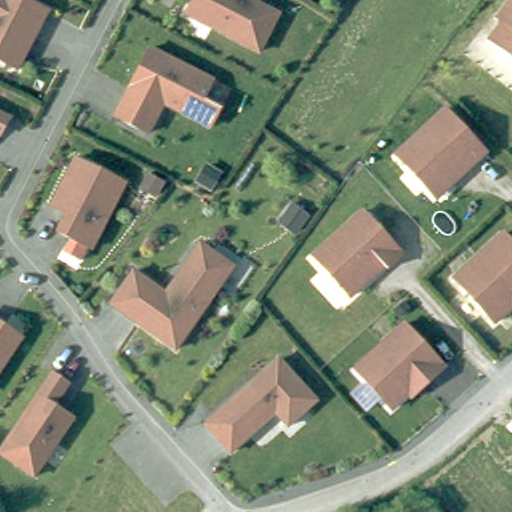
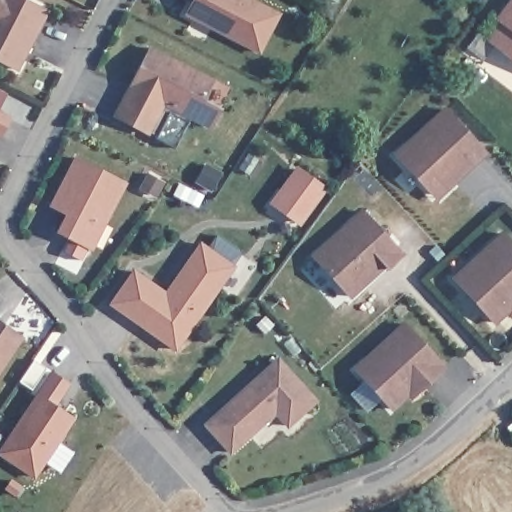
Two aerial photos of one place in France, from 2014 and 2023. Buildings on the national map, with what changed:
unchanged [(16,69),(0,60),(0,0),(29,0),(50,11),(16,69)]
unchanged [(278,11),(259,50),(185,15),(190,0),(256,0),(278,11)]
unchanged [(485,40),(503,17),(499,14),(510,0),(512,0),(512,61),(485,40)]
unchanged [(150,44),(216,79),(205,97),(219,105),(210,125),(161,105),(150,132),(115,112),(150,44)]
unchanged [(446,107),(487,154),(436,197),(395,152),(446,107)]
unchanged [(0,136),(0,112),(10,117),(0,136)]
unchanged [(74,153),(124,181),(90,247),(81,258),(66,250),(71,234),(60,228),(65,211),(50,205),(74,153)]
new [(328,189),(301,227),(268,204),(295,166),(328,189)]
unchanged [(363,210),(405,254),(351,297),(311,253),(363,210)]
unchanged [(502,235),(512,245),(512,308),(495,323),(455,278),(502,235)]
unchanged [(133,269),(163,291),(197,241),(233,267),(175,347),(107,302),(133,269)]
unchanged [(0,371),(0,319),(24,335),(0,371)]
unchanged [(400,322),(442,364),(393,410),(351,367),(400,322)]
unchanged [(276,356),(317,403),(288,426),(275,417),(233,453),(205,426),(276,356)]
unchanged [(70,383),(56,403),(73,418),(35,475),(0,454),(0,451),(50,371),(70,383)]

